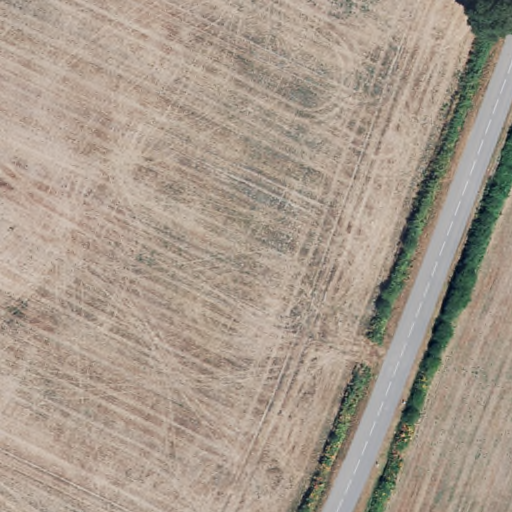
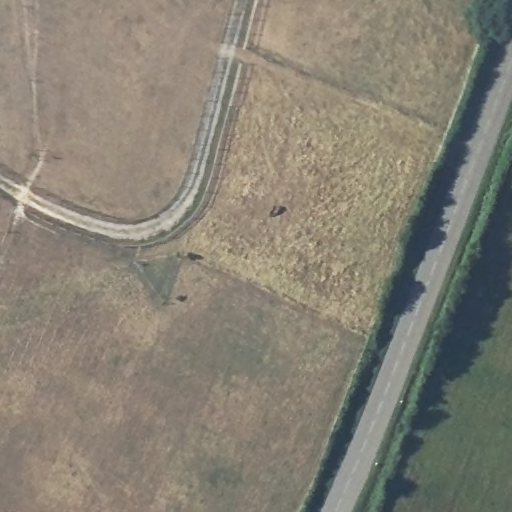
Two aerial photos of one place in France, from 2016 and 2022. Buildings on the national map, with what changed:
[]

